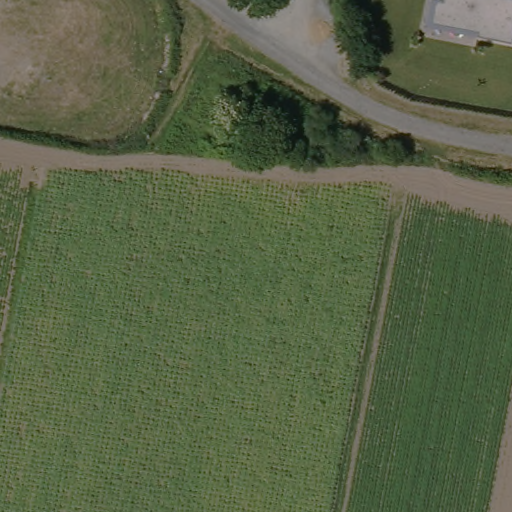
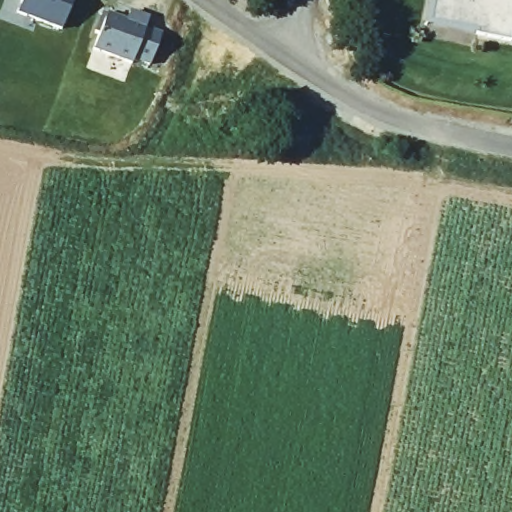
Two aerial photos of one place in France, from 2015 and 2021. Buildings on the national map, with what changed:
new [(17,14),(23,0),(73,0),(61,31),(17,14)]
unchanged [(477,31),(478,27),(430,19),(434,0),(512,0),(512,34),(511,37),(477,31)]
new [(127,21),(132,10),(150,18),(147,27),(162,34),(151,66),(134,60),(132,64),(94,50),(101,33),(95,31),(102,13),(107,15),(108,13),(127,21)]

